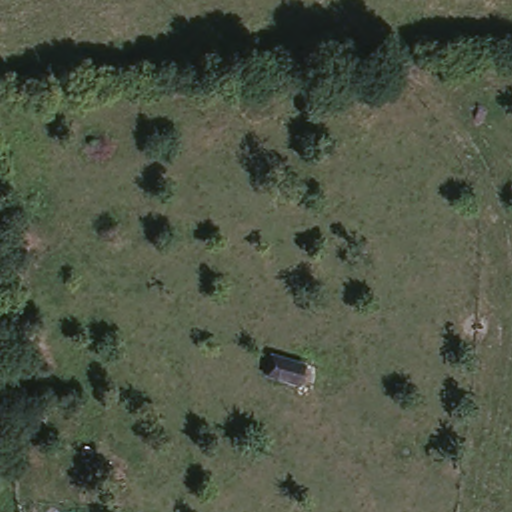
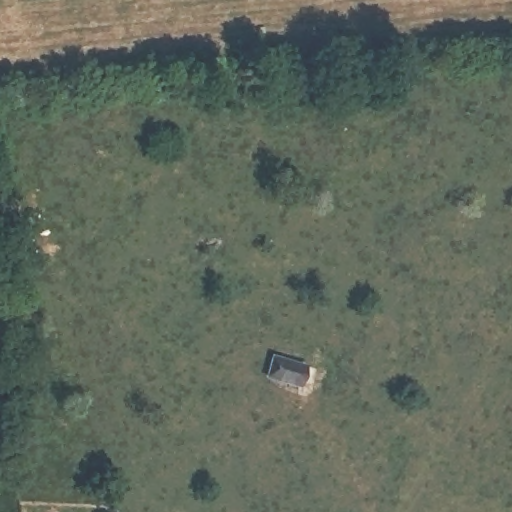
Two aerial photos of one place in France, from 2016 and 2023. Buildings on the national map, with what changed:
unchanged [(265,379),(270,357),(306,364),(299,390),(265,379)]

